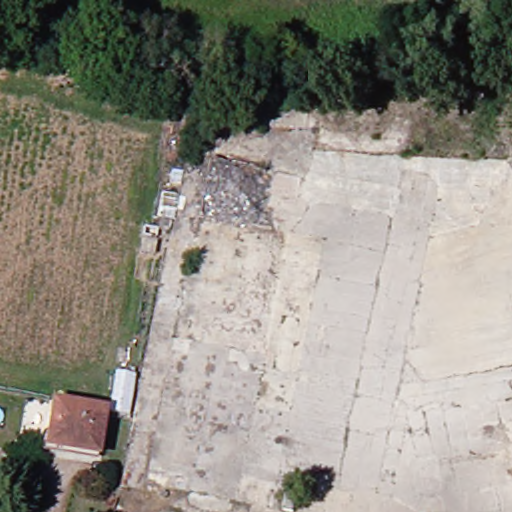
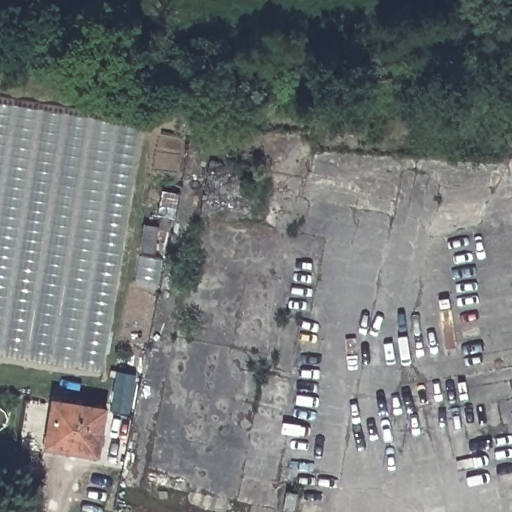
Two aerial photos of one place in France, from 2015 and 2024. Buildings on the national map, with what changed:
new [(103,372),(0,355),(0,103),(141,126),(103,372)]
unchanged [(78,447),(50,440),(60,398),(110,407),(103,443),(102,450),(78,447)]

